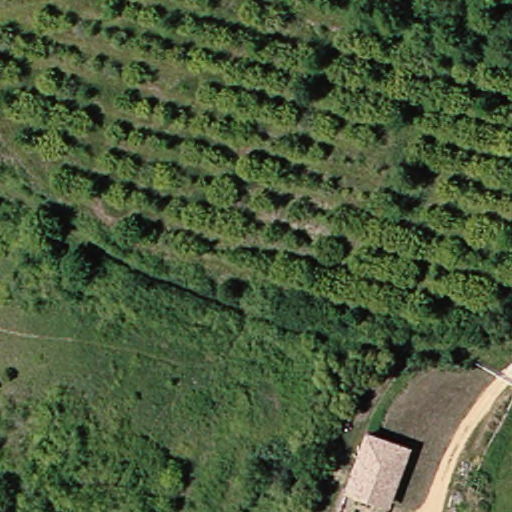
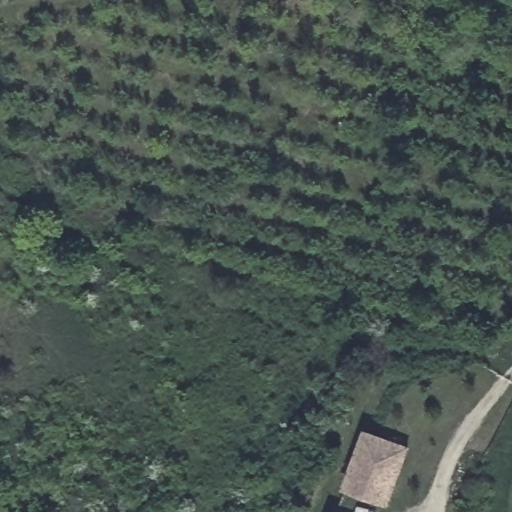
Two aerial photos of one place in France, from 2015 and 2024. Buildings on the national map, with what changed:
unchanged [(392,512),(345,512),(375,435),(415,450),(392,512)]
unchanged [(280,512),(268,512),(270,508),(280,512)]

